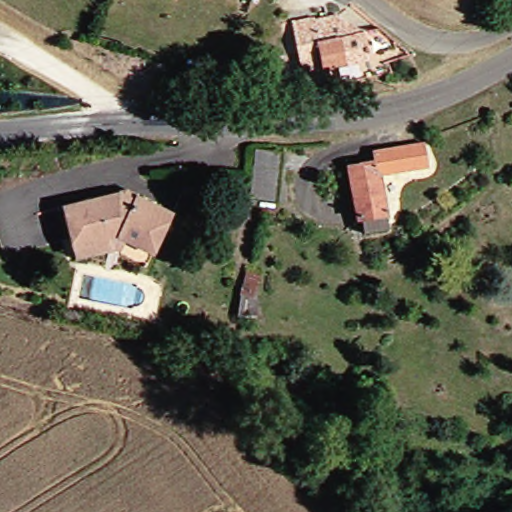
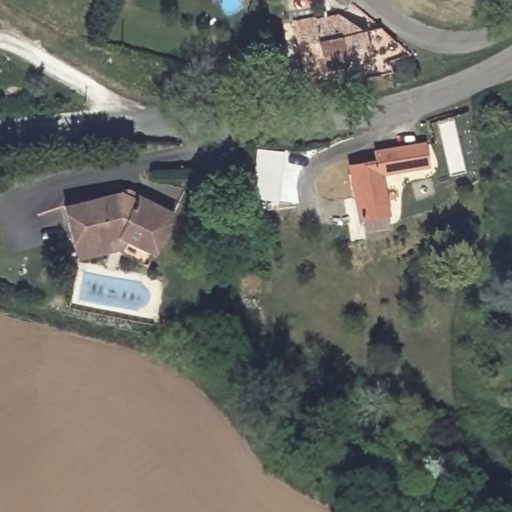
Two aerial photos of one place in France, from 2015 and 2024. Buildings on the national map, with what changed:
unchanged [(296,58),(288,24),(329,15),(333,15),(359,30),(366,57),(319,67),(316,54),(296,58)]
unchanged [(380,167),(385,208),(359,212),(351,160),(377,156),(376,146),(422,140),(426,160),(380,167)]
unchanged [(278,153),(273,200),(248,197),(254,151),(278,153)]
unchanged [(75,261),(63,204),(138,185),(177,202),(158,256),(126,246),(75,261)]

